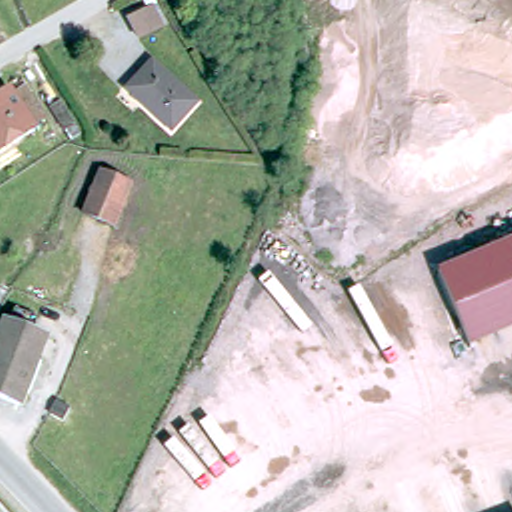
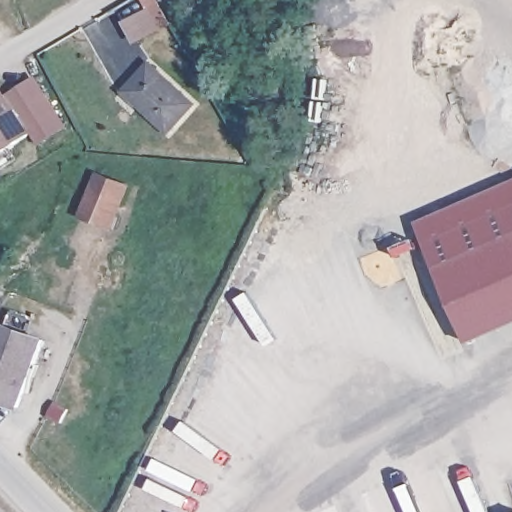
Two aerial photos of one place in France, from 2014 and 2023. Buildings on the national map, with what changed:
unchanged [(124,29),(146,13),(159,35),(137,51),(124,29)]
unchanged [(173,134),(133,93),(159,68),(198,110),(173,134)]
unchanged [(43,115),(19,85),(32,76),(55,107),(43,115)]
unchanged [(31,134),(0,154),(0,99),(7,94),(31,134)]
new [(438,268),(418,222),(512,181),(512,236),(438,268)]
unchanged [(112,233),(84,219),(101,182),(129,194),(112,233)]
unchanged [(512,236),(512,326),(469,344),(438,268),(512,236)]
unchanged [(0,339),(6,324),(48,341),(21,408),(0,399),(0,339)]

